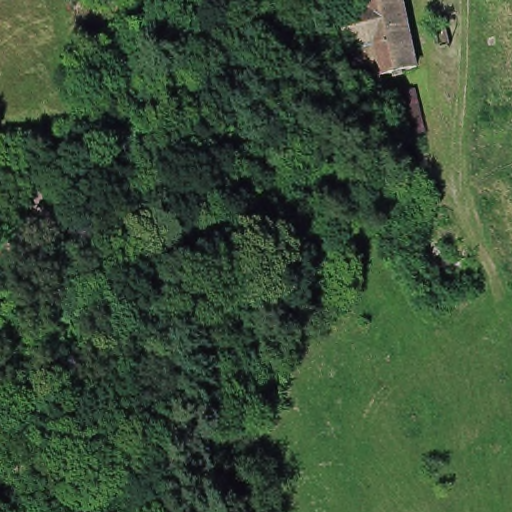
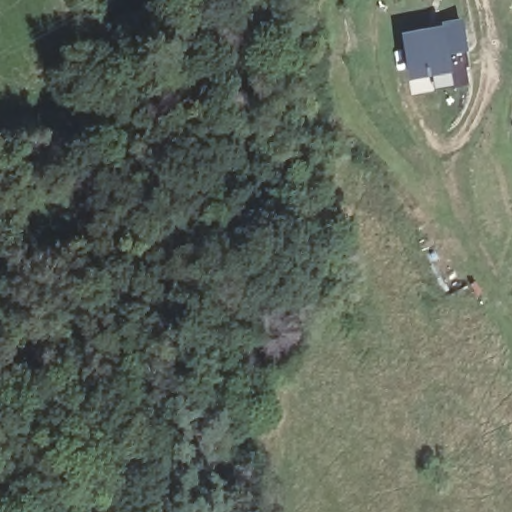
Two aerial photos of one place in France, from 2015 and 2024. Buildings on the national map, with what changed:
demolished [(390,72),(393,91),(396,106),(369,112),(363,99),(358,100),(350,48),(356,46),(348,0),(369,0),(375,30),(383,73),(390,72)]
demolished [(375,30),(369,0),(411,0),(415,23),(375,30)]
new [(411,84),(403,36),(430,32),(429,27),(464,22),(470,53),(452,56),(455,76),(411,84)]
demolished [(424,66),(390,72),(383,73),(375,30),(415,23),(424,66)]
demolished [(413,89),(423,89),(429,131),(401,136),(396,106),(393,91),(413,89)]

